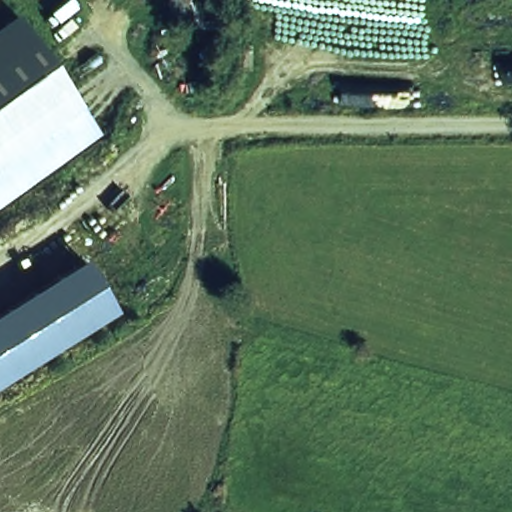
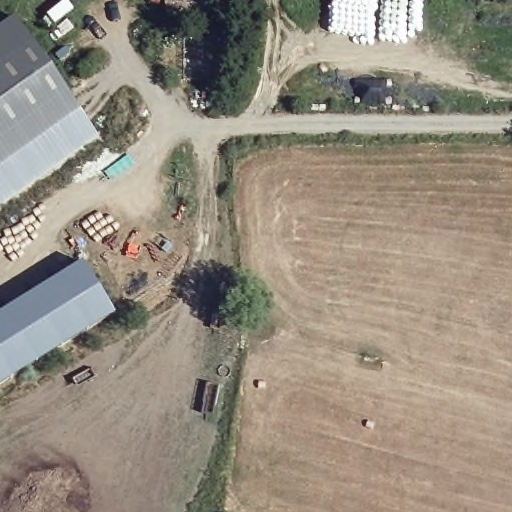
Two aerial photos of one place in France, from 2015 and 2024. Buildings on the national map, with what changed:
unchanged [(12,16),(77,110),(95,136),(0,204),(0,24),(12,16)]
unchanged [(116,315),(0,388),(0,314),(82,263),(116,315)]

